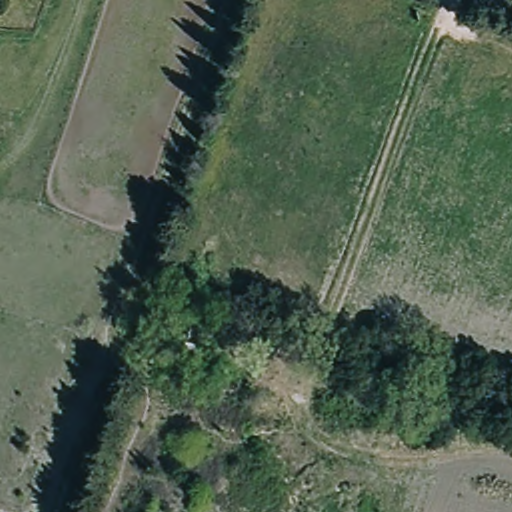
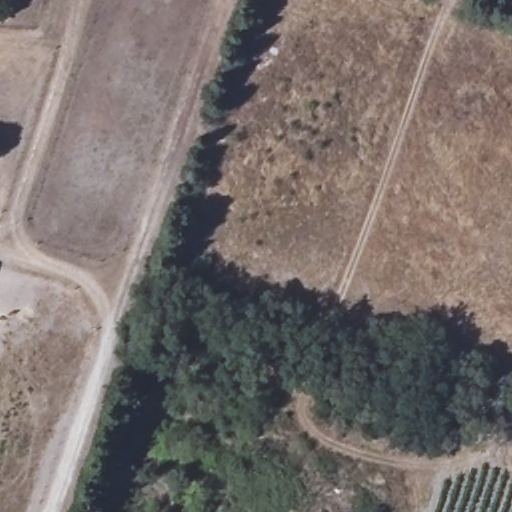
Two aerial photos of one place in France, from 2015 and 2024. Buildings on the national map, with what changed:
unchanged [(469,441),(455,436),(444,432),(450,411),(463,415),(475,418),(469,441)]

